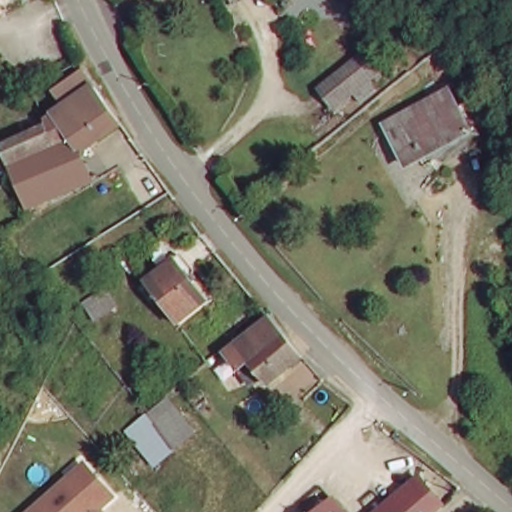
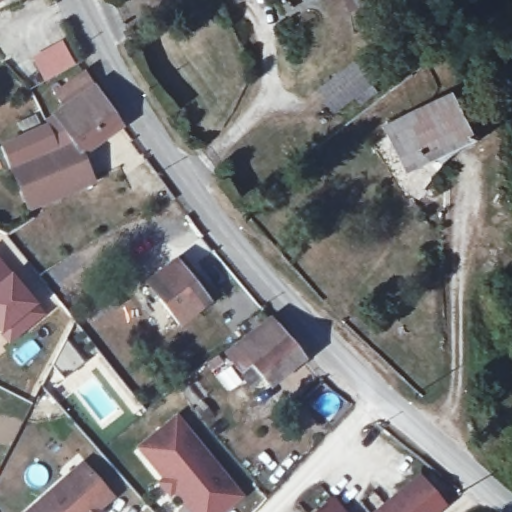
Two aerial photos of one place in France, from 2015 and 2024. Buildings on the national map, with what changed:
unchanged [(0,4),(0,0),(7,0),(0,4)]
unchanged [(390,71),(348,106),(331,86),(375,51),(390,71)]
unchanged [(57,93),(86,72),(125,125),(102,140),(75,102),(67,108),(57,93)]
unchanged [(476,136),(429,160),(427,157),(410,166),(389,126),(454,92),(476,136)]
unchanged [(82,154),(94,180),(29,210),(4,146),(50,125),(48,121),(67,108),(75,102),(102,140),(82,154)]
new [(4,344),(0,339),(0,259),(46,314),(4,344)]
unchanged [(148,284),(178,260),(211,303),(181,326),(148,284)]
unchanged [(119,306),(97,322),(88,311),(111,295),(119,306)]
unchanged [(273,314),(305,353),(271,381),(252,358),(244,365),(230,347),(273,314)]
demolished [(161,399),(187,432),(132,475),(106,442),(161,399)]
new [(135,446),(177,412),(243,496),(223,512),(188,512),(173,493),(168,497),(156,482),(162,478),(135,446)]
unchanged [(22,512),(80,462),(117,499),(99,512),(22,512)]
unchanged [(366,512),(424,468),(453,502),(439,512),(366,512)]
unchanged [(353,512),(312,512),(336,493),(353,512)]

